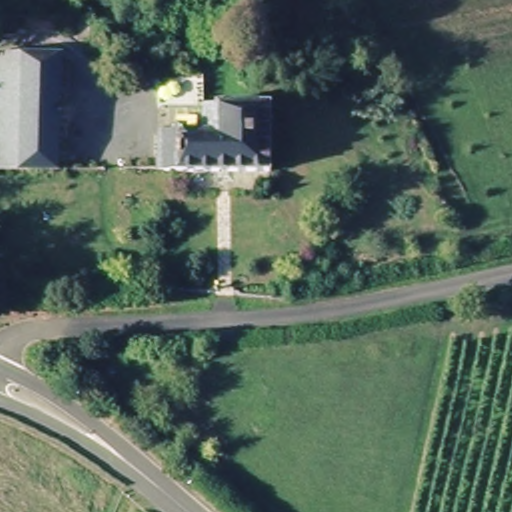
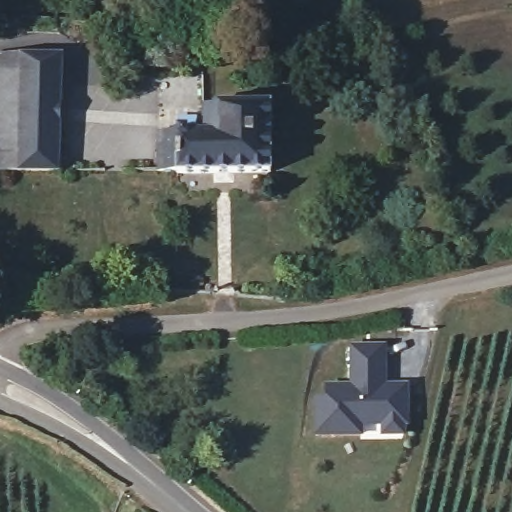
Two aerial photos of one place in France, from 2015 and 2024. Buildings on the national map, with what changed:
unchanged [(240,10),(240,49),(220,49),(221,10),(240,10)]
unchanged [(66,57),(63,175),(0,174),(0,57),(66,57)]
unchanged [(182,89),(183,122),(211,122),(211,95),(254,95),(270,95),(270,170),(162,169),(164,88),(182,89)]
new [(362,423),(362,432),(317,433),(317,398),(327,397),(328,385),(353,385),(353,345),(385,345),(385,377),(386,384),(408,385),(407,418),(404,418),(404,433),(384,433),(384,423),(362,423)]

